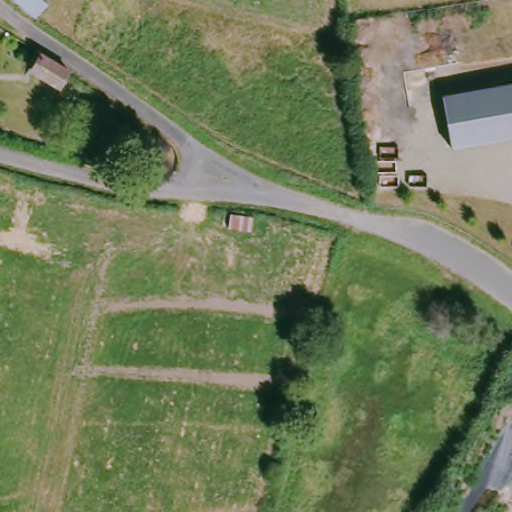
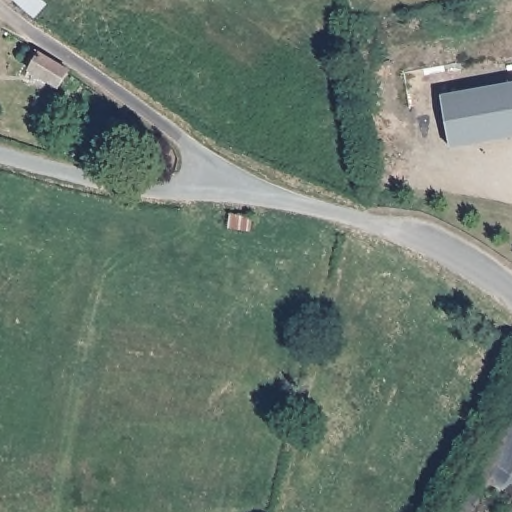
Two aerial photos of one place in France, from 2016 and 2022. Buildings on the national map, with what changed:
unchanged [(38,21),(16,0),(44,0),(52,6),(38,21)]
unchanged [(76,79),(67,95),(28,73),(37,57),(76,79)]
unchanged [(512,87),(512,140),(452,150),(443,99),(512,87)]

